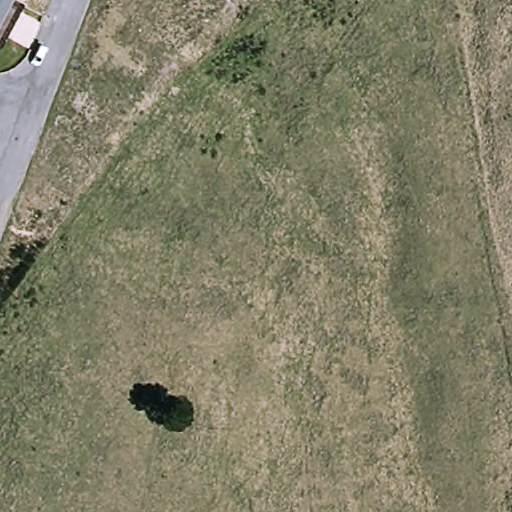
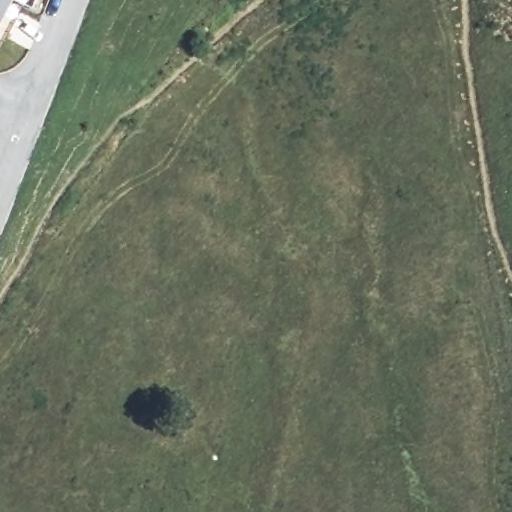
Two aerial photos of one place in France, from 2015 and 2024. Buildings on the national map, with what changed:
unchanged [(11,0),(0,27),(0,0),(11,0)]

